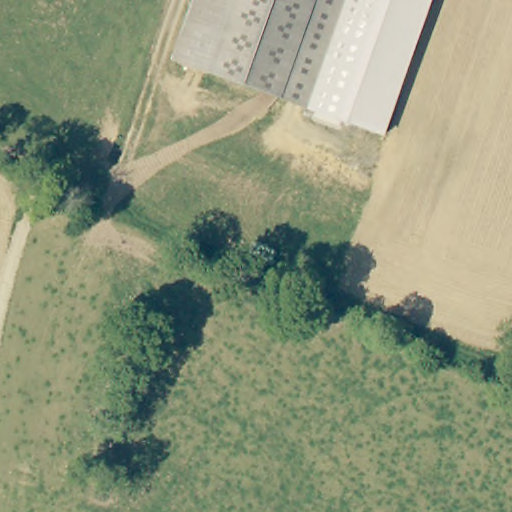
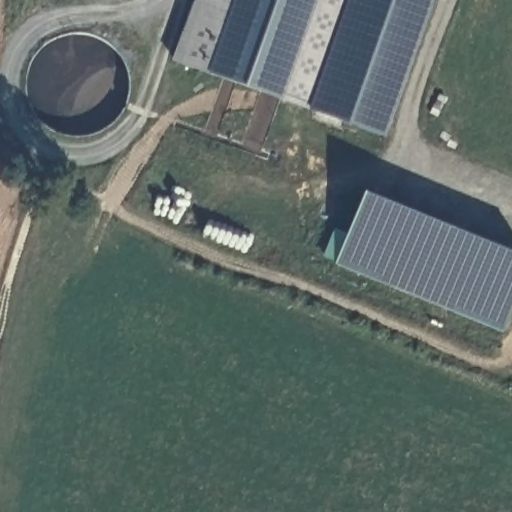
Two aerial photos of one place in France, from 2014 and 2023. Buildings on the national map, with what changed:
unchanged [(174,59),(195,0),(347,0),(308,107),(174,59)]
unchanged [(431,0),(384,134),(308,107),(347,0),(431,0)]
new [(502,328),(333,265),(362,192),(512,248),(512,305),(502,328)]

